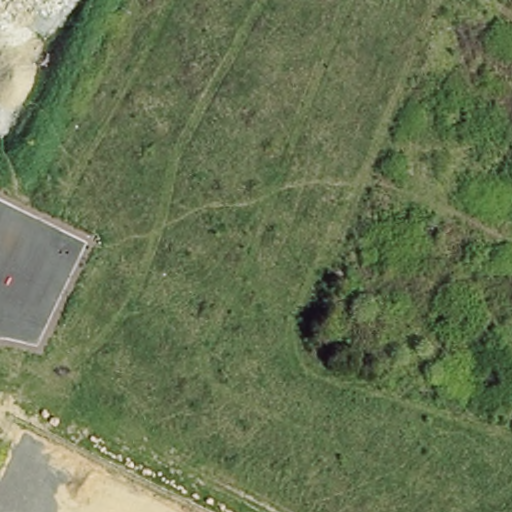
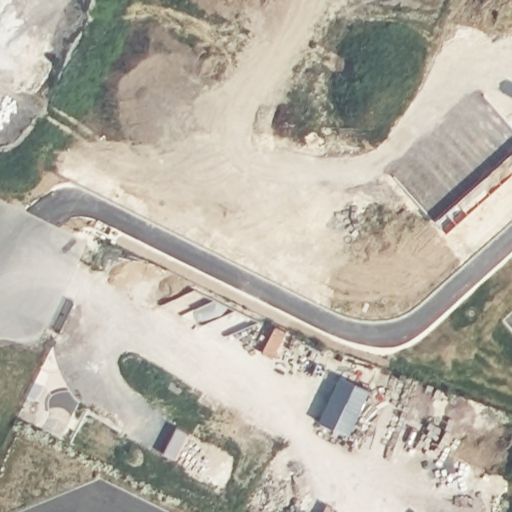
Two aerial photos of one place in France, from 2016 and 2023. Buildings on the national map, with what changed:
new [(341,379),(367,391),(350,430),(323,418),(341,379)]

